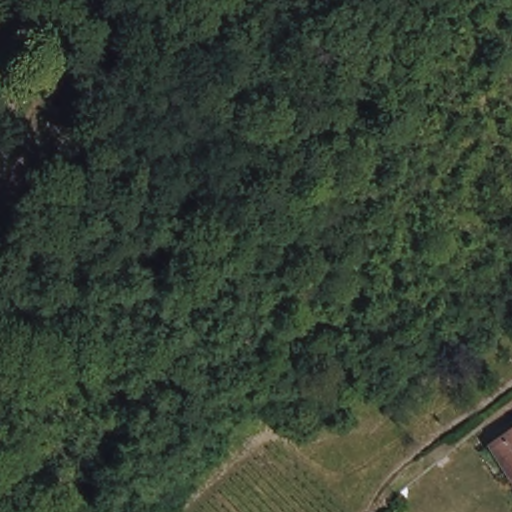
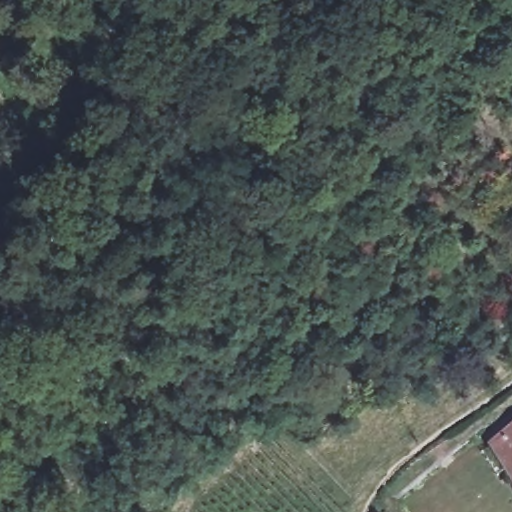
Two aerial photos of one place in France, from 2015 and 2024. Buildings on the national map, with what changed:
unchanged [(512,467),(494,437),(512,424),(512,467)]

